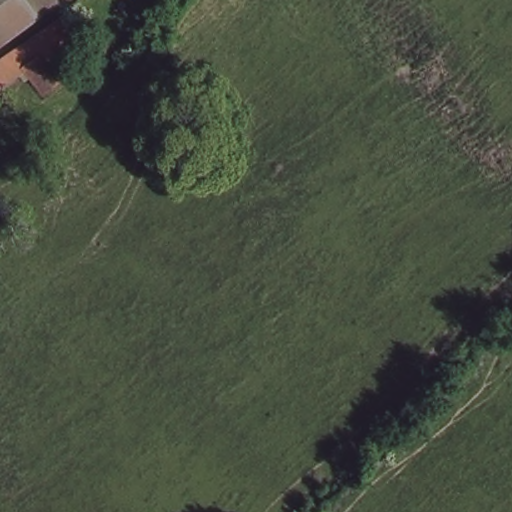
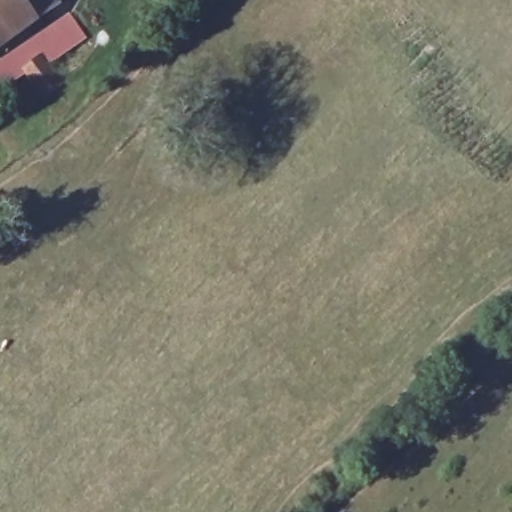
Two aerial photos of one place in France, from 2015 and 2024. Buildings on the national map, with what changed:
unchanged [(56,1),(0,44),(0,0),(56,0),(56,1)]

